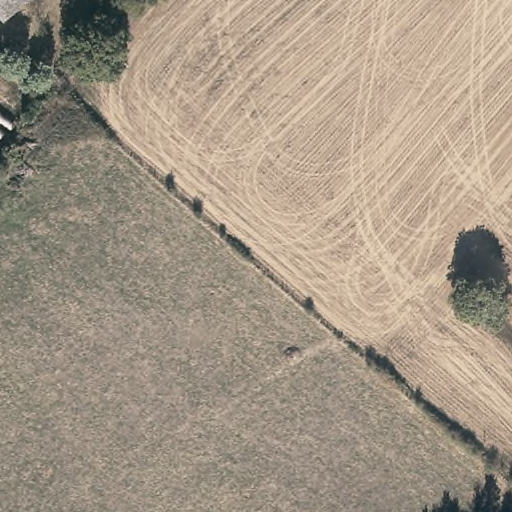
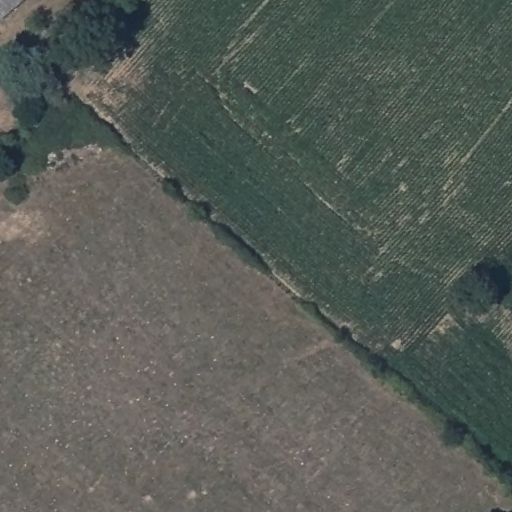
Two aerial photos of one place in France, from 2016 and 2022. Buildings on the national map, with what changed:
unchanged [(29,0),(0,23),(0,0),(29,0)]

